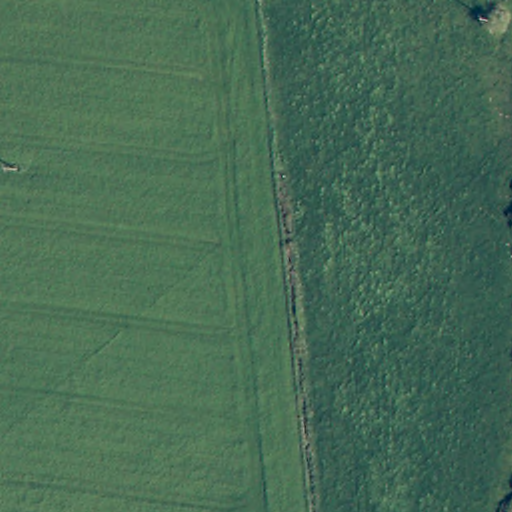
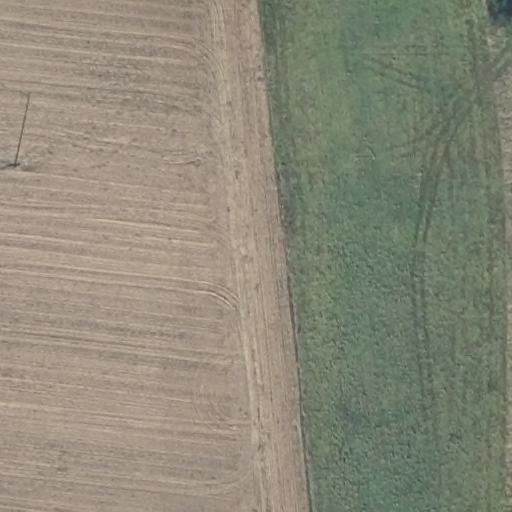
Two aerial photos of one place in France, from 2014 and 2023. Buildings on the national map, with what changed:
[]

